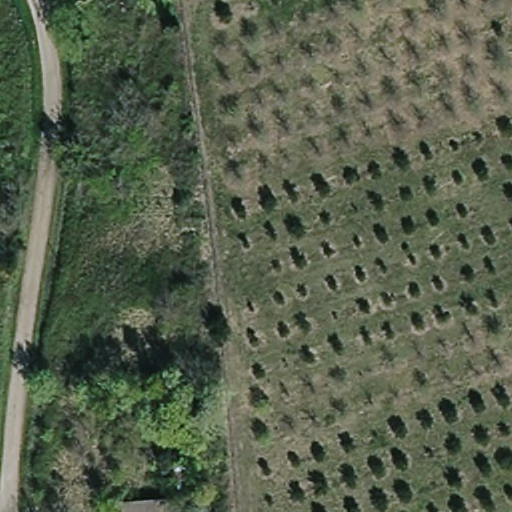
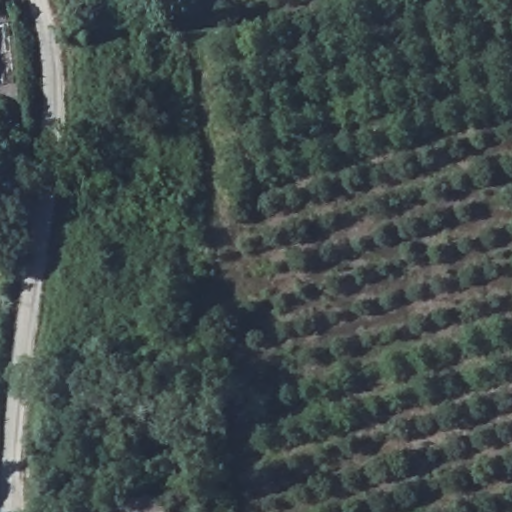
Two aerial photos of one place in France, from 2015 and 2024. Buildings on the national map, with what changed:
unchanged [(76,43),(68,42),(50,40),(54,0),(77,3),(81,4),(76,43)]
unchanged [(170,512),(116,512),(116,502),(170,501),(170,512)]

